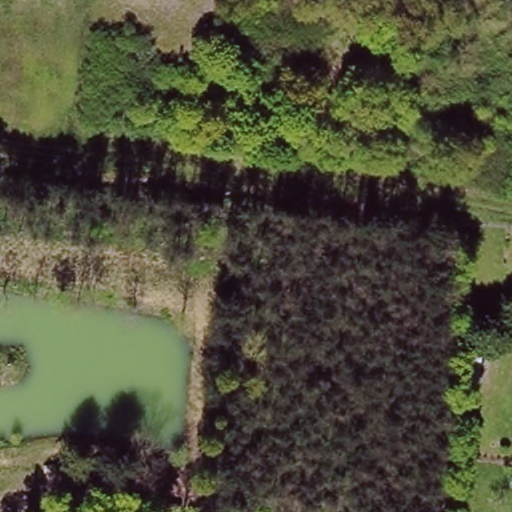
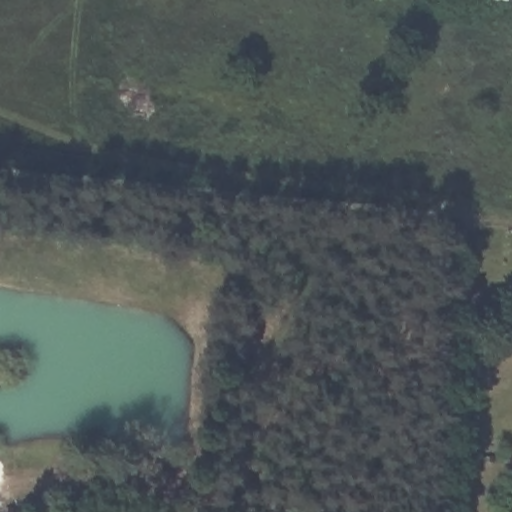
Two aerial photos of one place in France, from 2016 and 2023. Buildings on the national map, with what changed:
unchanged [(455,341),(482,342),(480,386),(454,384),(455,341)]

